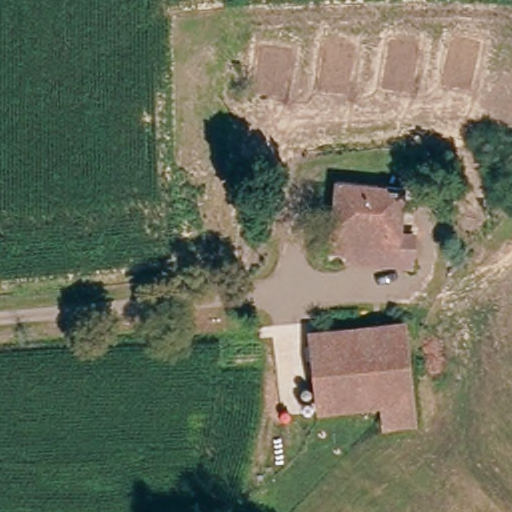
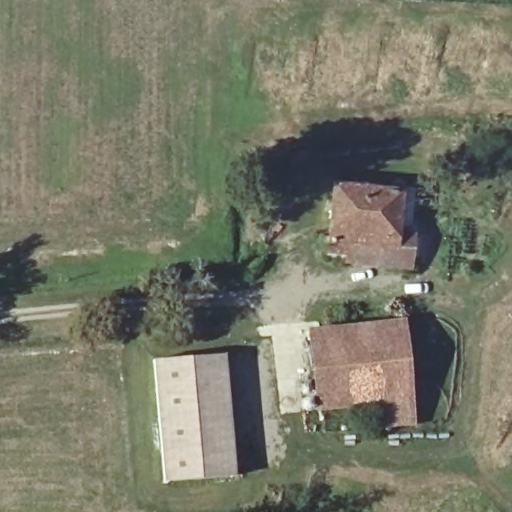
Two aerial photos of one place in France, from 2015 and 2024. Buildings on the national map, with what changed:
unchanged [(345,264),(345,247),(328,248),(335,179),(405,188),(402,228),(418,231),(416,271),(345,264)]
unchanged [(406,324),(415,426),(382,429),(380,407),(320,413),(311,331),(406,324)]
new [(165,484),(154,362),(226,356),(236,478),(165,484)]

